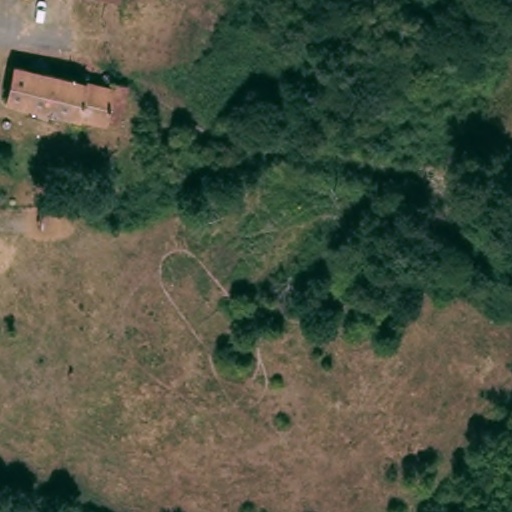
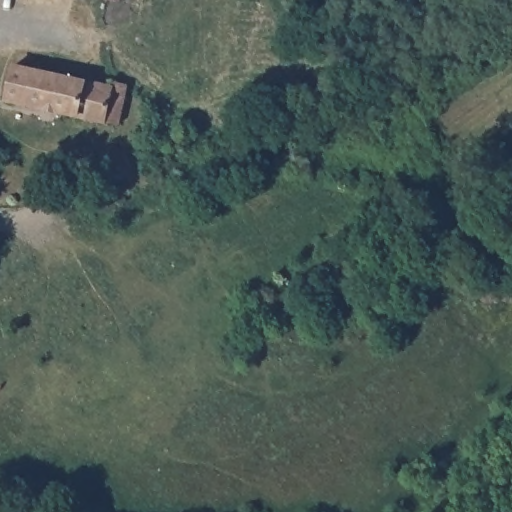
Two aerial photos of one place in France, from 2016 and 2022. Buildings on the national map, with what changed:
unchanged [(263,62),(207,50),(220,0),(278,0),(263,62)]
unchanged [(14,61),(109,84),(111,73),(130,77),(119,122),(5,96),(14,61)]

